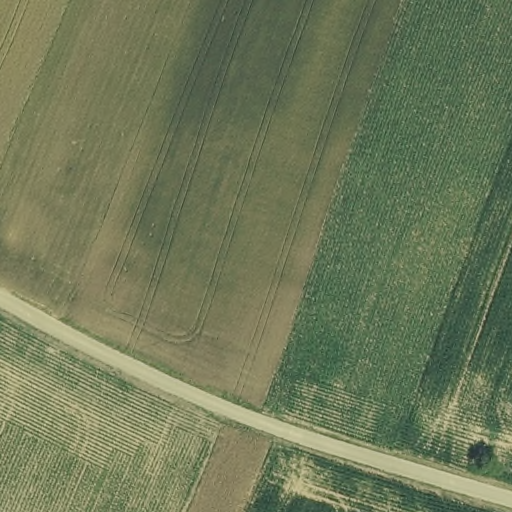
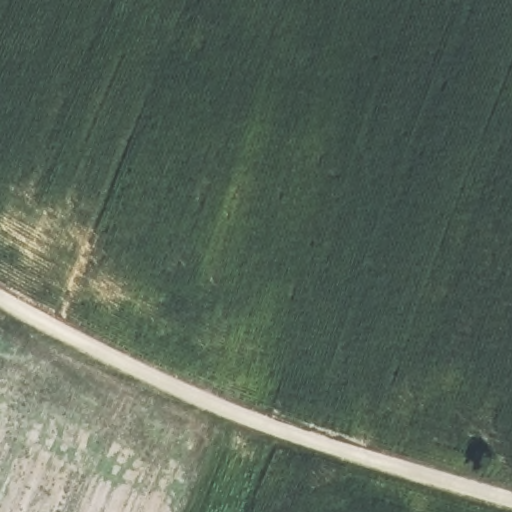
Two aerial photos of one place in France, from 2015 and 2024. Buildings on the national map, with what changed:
[]

